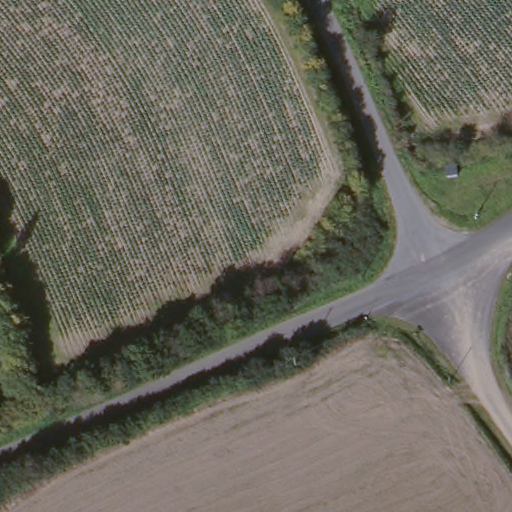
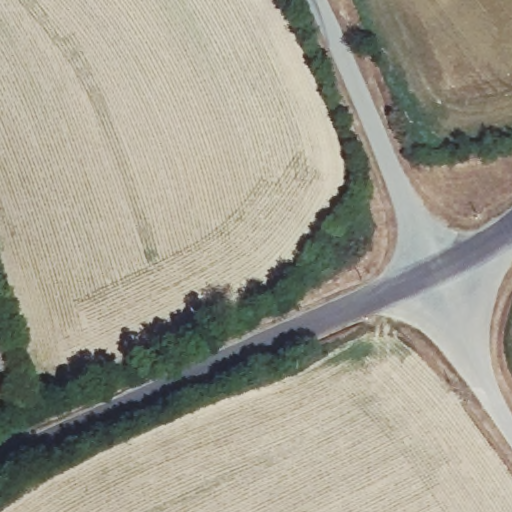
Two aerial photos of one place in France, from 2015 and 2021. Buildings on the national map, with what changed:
unchanged [(0,335),(9,373),(0,375),(0,335)]

